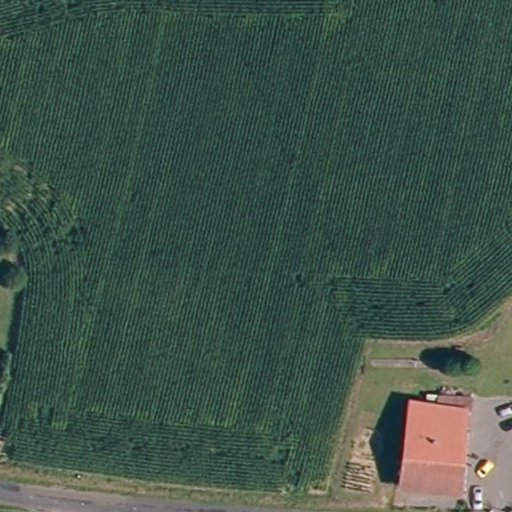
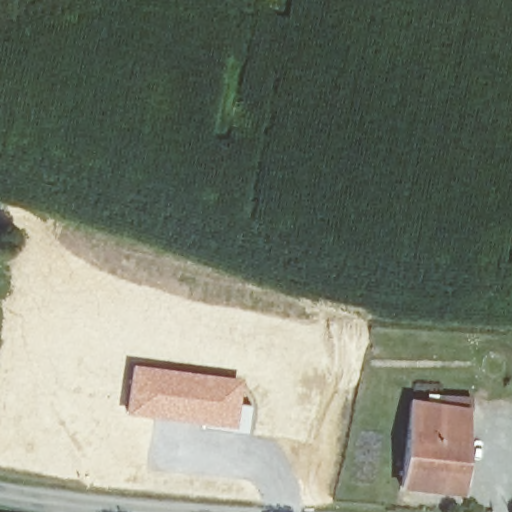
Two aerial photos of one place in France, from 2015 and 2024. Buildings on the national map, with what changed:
new [(131,364),(240,378),(238,402),(252,405),(248,433),(126,414),(131,364)]
unchanged [(405,410),(442,411),(445,395),(488,397),(487,416),(468,416),(460,490),(398,482),(405,410)]

